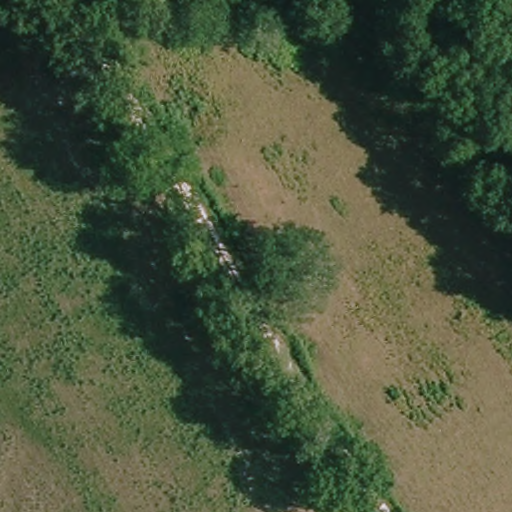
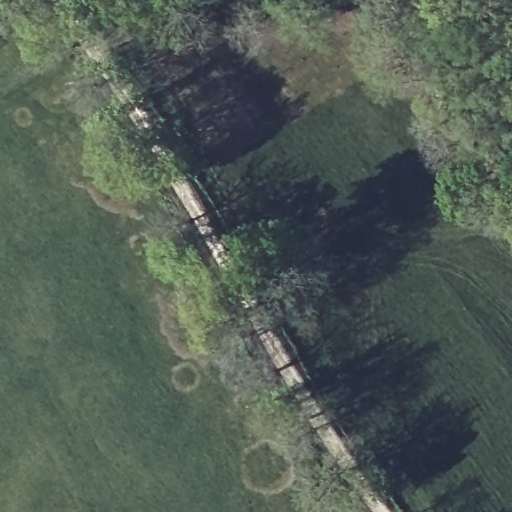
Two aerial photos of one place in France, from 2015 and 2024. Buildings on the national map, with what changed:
[]

